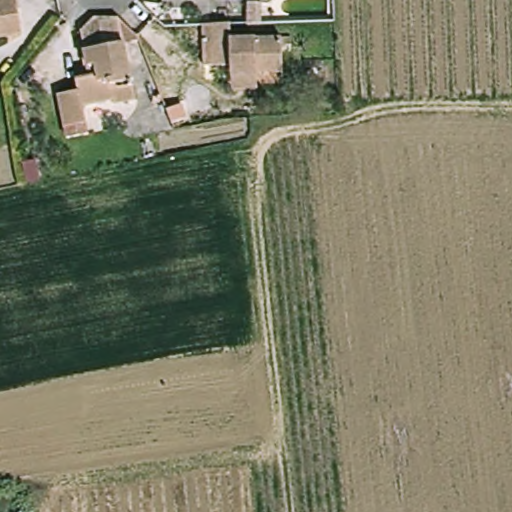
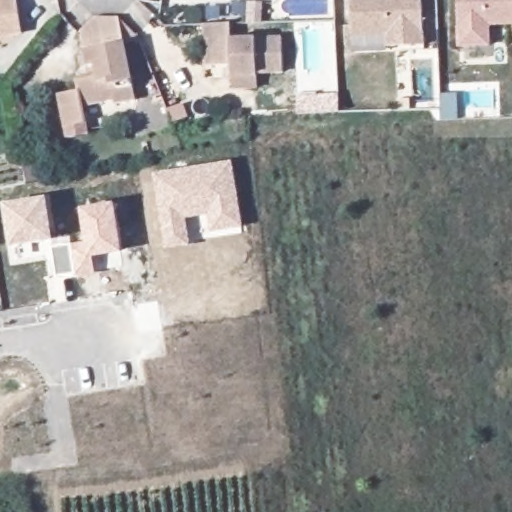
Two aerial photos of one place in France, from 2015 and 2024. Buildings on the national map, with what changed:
unchanged [(20,0),(26,33),(0,37),(0,0),(20,0)]
new [(385,47),(385,36),(352,40),(351,0),(423,0),(424,46),(385,47)]
new [(490,49),(458,50),(457,0),(512,0),(512,27),(490,27),(490,49)]
unchanged [(123,18),(139,100),(117,104),(117,99),(87,105),(90,122),(68,127),(62,95),(82,91),(80,81),(93,77),(85,31),(98,17),(123,18)]
unchanged [(295,45),(285,45),(286,72),(235,74),(235,65),(208,66),(207,24),(234,23),(234,39),(295,37),(295,45)]
new [(164,250),(152,174),(231,160),(242,227),(210,232),(207,215),(185,219),(190,247),(164,250)]
new [(54,241),(12,247),(3,204),(47,197),(54,241)]
new [(80,209),(114,204),(122,252),(92,257),(94,274),(76,277),(76,273),(57,277),(52,249),(85,243),(80,209)]

